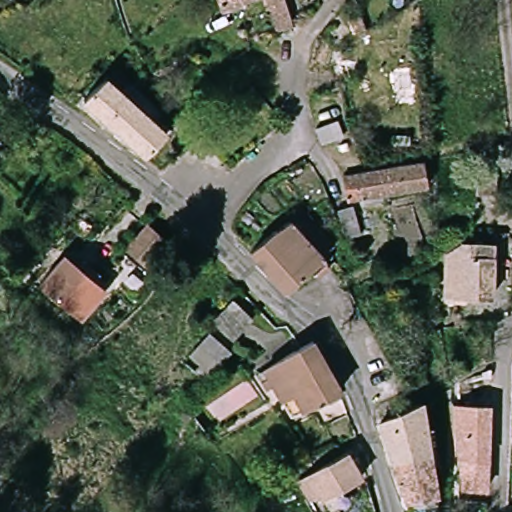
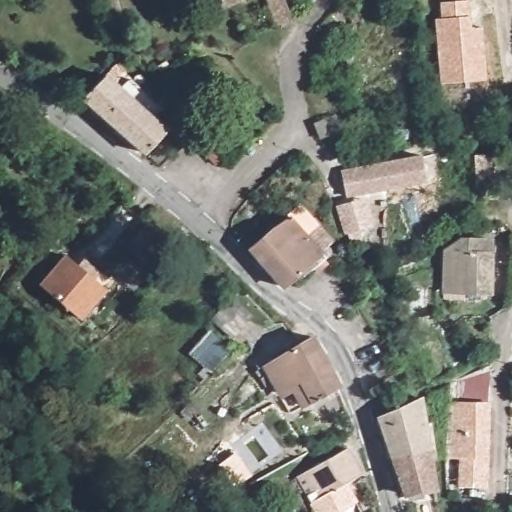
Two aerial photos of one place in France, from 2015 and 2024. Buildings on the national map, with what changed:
unchanged [(268,2),(225,16),(219,0),(279,0),(288,22),(274,24),(268,2)]
new [(439,17),(439,5),(469,2),(472,28),(482,27),(487,80),(440,86),(433,20),(439,17)]
unchanged [(166,110),(153,125),(167,139),(148,157),(85,99),(114,64),(166,110)]
unchanged [(318,87),(345,87),(349,140),(335,129),(323,132),(316,120),(321,111),(318,87)]
unchanged [(497,156),(494,188),(475,185),(479,154),(497,156)]
unchanged [(343,170),(420,156),(426,180),(348,194),(343,170)]
unchanged [(347,197),(357,225),(347,228),(335,200),(347,197)]
unchanged [(303,280),(294,271),(276,287),(245,255),(279,222),(289,214),(321,250),(312,259),(317,265),(303,280)]
unchanged [(153,223),(173,245),(151,267),(131,246),(153,223)]
unchanged [(490,302),(440,297),(445,242),(493,247),(490,302)]
unchanged [(104,288),(80,317),(41,281),(65,253),(104,288)]
unchanged [(235,298),(253,317),(231,337),(215,319),(235,298)]
unchanged [(213,331),(231,350),(218,361),(200,342),(213,331)]
unchanged [(290,402),(271,353),(319,335),(321,334),(338,387),(290,402)]
unchanged [(402,495),(385,426),(376,410),(399,406),(419,399),(447,486),(402,495)]
unchanged [(484,490),(460,489),(457,401),(485,400),(485,453),(484,490)]
unchanged [(352,450),(359,478),(318,495),(309,468),(352,450)]

